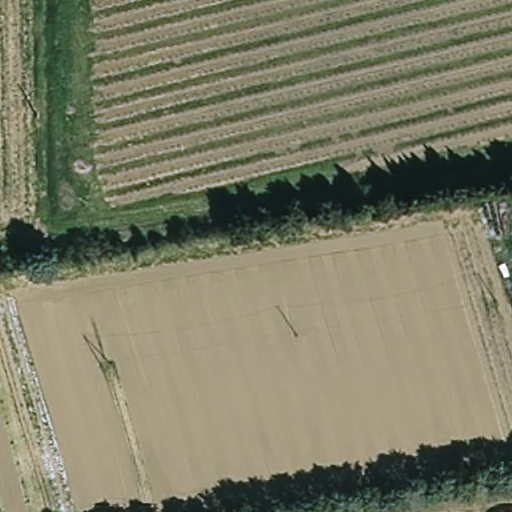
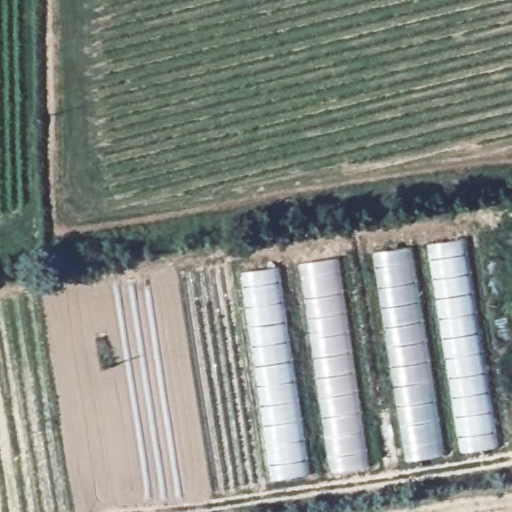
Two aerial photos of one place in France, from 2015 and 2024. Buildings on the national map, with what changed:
new [(464,238),(498,445),(459,451),(425,245),(464,238)]
new [(404,458),(371,253),(409,247),(442,452),(404,458)]
new [(369,465),(330,471),(296,262),(335,257),(369,465)]
new [(268,480),(238,271),(276,265),(306,472),(268,480)]

